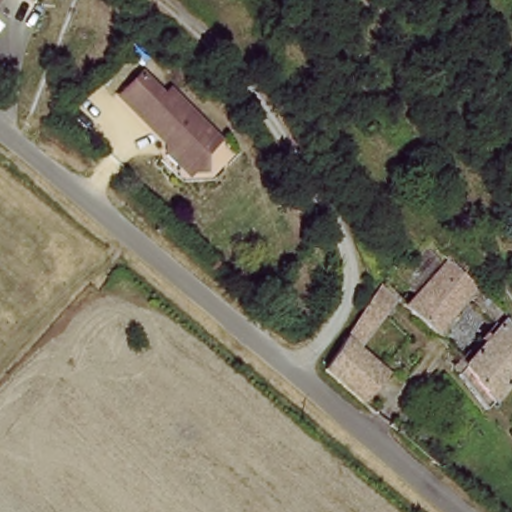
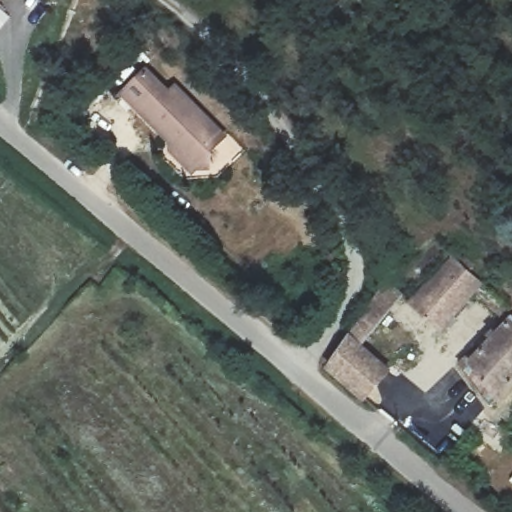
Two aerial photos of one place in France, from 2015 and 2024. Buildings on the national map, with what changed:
unchanged [(0,8),(0,0),(8,0),(0,8)]
unchanged [(123,98),(145,75),(168,99),(174,92),(222,140),(208,155),(209,171),(196,171),(192,175),(171,154),(171,146),(123,98)]
unchanged [(406,300),(447,255),(512,318),(512,379),(501,391),(473,364),(499,328),(468,297),(436,328),(406,300)]
unchanged [(374,400),(333,367),(389,290),(386,275),(396,284),(407,294),(369,347),(396,370),(374,400)]

